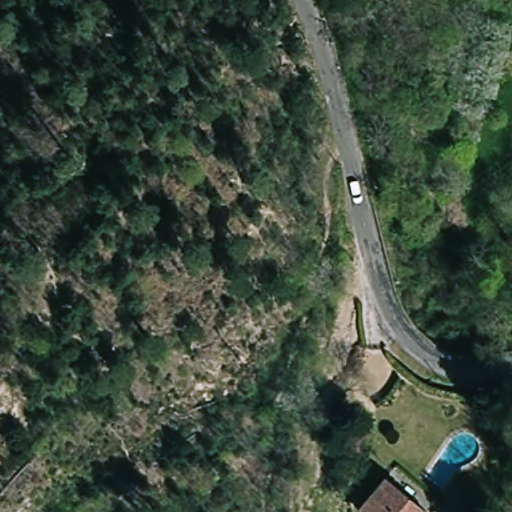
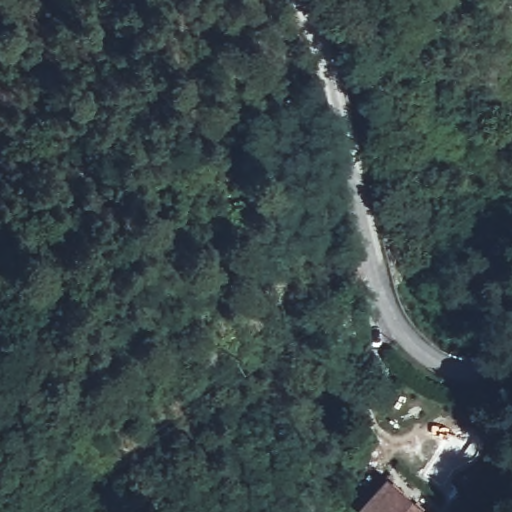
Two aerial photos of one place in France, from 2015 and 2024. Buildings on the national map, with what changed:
unchanged [(389,484),(426,512),(366,512),(389,484)]

